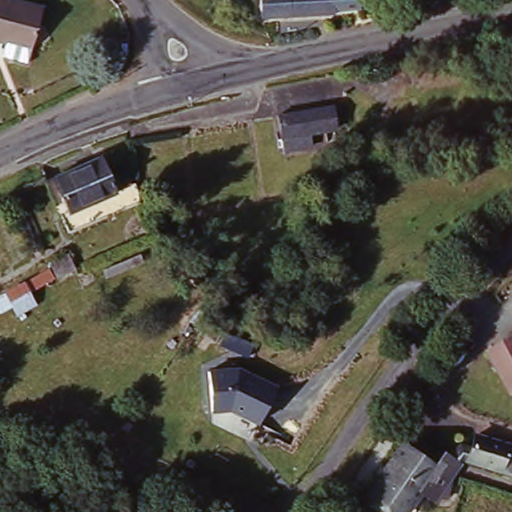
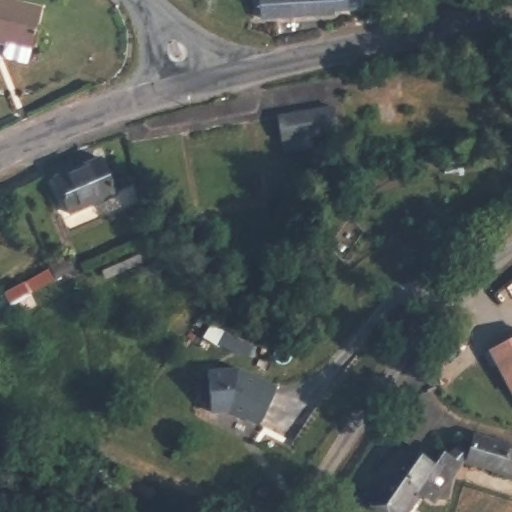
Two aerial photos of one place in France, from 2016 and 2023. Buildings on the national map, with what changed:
unchanged [(33,49),(0,41),(0,0),(2,0),(41,10),(33,49)]
unchanged [(362,0),(364,16),(334,19),(334,21),(262,27),(259,0),(362,0)]
unchanged [(512,51),(512,68),(495,70),(492,54),(512,51)]
unchanged [(334,104),(338,130),(313,135),(315,146),(286,149),(279,114),(334,104)]
unchanged [(101,155),(116,189),(70,212),(54,177),(101,155)]
unchanged [(140,260),(108,282),(101,269),(135,251),(140,260)]
unchanged [(66,255),(73,270),(31,293),(24,281),(44,270),(42,265),(66,255)]
unchanged [(16,320),(10,309),(0,315),(0,296),(24,281),(39,307),(16,320)]
unchanged [(512,338),(512,393),(489,350),(512,338)]
unchanged [(259,424),(229,411),(212,412),(208,372),(238,370),(275,388),(259,424)]
unchanged [(455,478),(451,497),(444,497),(439,501),(438,504),(419,496),(408,512),(387,512),(368,499),(401,451),(429,468),(436,469),(444,459),(454,461),(458,457),(467,451),(476,452),(479,437),(512,444),(512,445),(512,471),(507,469),(474,463),(455,478)]
unchanged [(219,483),(216,492),(204,486),(207,478),(219,483)]

